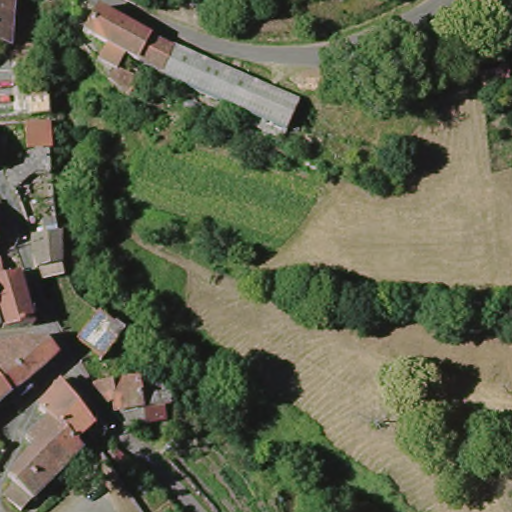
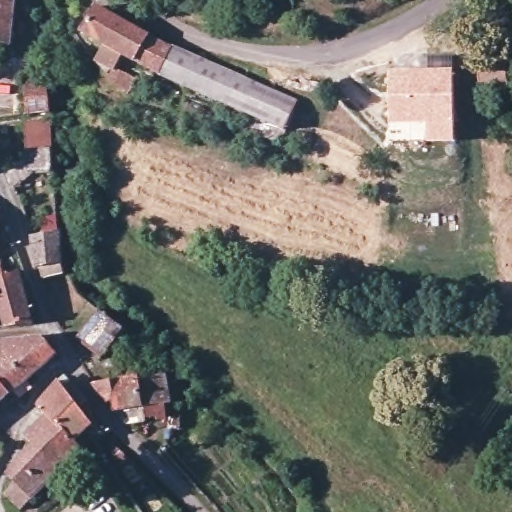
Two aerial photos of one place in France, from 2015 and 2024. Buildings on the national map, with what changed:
unchanged [(15,0),(13,42),(12,46),(0,41),(0,0),(15,0)]
unchanged [(120,83),(97,65),(103,48),(83,36),(99,6),(148,30),(132,63),(120,83)]
unchanged [(304,104),(288,133),(132,63),(148,30),(304,104)]
unchanged [(512,85),(512,89),(484,92),(482,67),(510,66),(512,85)]
new [(393,145),(391,127),(390,71),(455,71),(456,144),(393,145)]
unchanged [(67,249),(67,267),(61,268),(44,272),(41,271),(36,243),(36,240),(66,237),(67,249)]
unchanged [(3,272),(0,273),(0,264),(3,272)]
unchanged [(33,328),(4,333),(3,333),(0,324),(0,280),(16,275),(22,273),(33,313),(33,328)]
unchanged [(86,334),(102,311),(128,331),(111,352),(86,334)]
unchanged [(13,395),(0,380),(0,343),(46,340),(62,354),(27,384),(13,395)]
unchanged [(124,423),(121,422),(115,412),(113,402),(108,402),(93,383),(95,383),(107,381),(124,380),(137,378),(152,377),(166,376),(171,402),(146,406),(147,421),(124,423)]
unchanged [(86,396),(90,403),(84,409),(93,420),(88,424),(75,436),(73,437),(46,411),(45,412),(38,407),(43,396),(59,378),(69,391),(79,402),(86,396)]
unchanged [(13,395),(8,400),(0,406),(0,380),(13,395)]
unchanged [(24,432),(45,412),(73,437),(82,444),(32,495),(34,498),(24,507),(5,490),(14,477),(7,471),(12,465),(32,441),(24,432)]
unchanged [(179,418),(178,431),(175,431),(166,430),(166,418),(179,418)]
unchanged [(104,473),(94,479),(89,471),(99,465),(104,473)]

